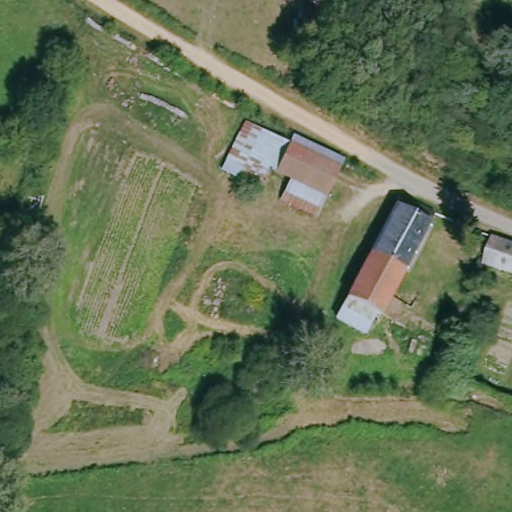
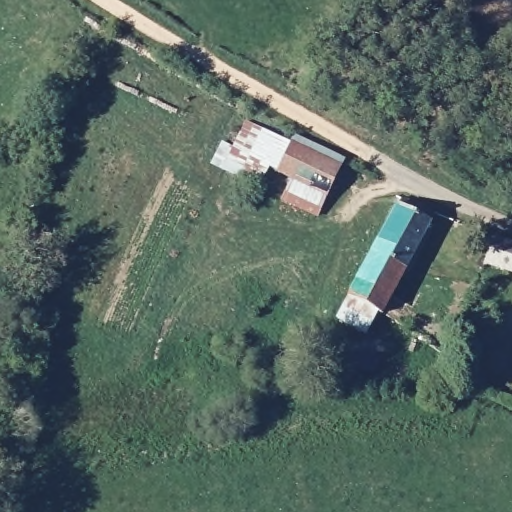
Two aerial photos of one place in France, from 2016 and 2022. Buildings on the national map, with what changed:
unchanged [(276,200),(285,180),(270,172),(256,187),(220,169),(242,119),(286,142),(289,131),(344,159),(336,166),(321,195),(315,216),(276,200)]
unchanged [(369,317),(361,311),(350,326),(327,310),(396,210),(427,228),(369,317)]
unchanged [(482,263),(489,233),(512,240),(512,268),(482,263)]

